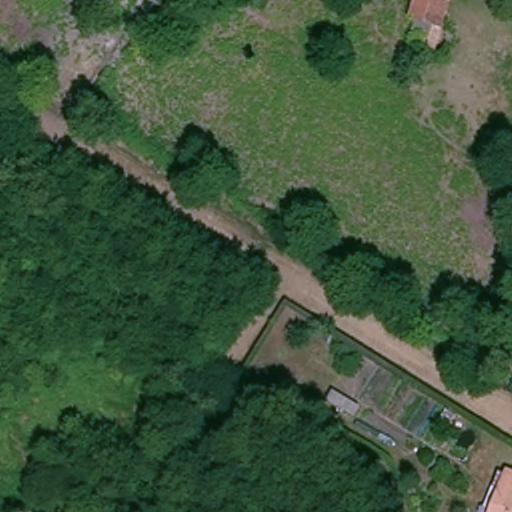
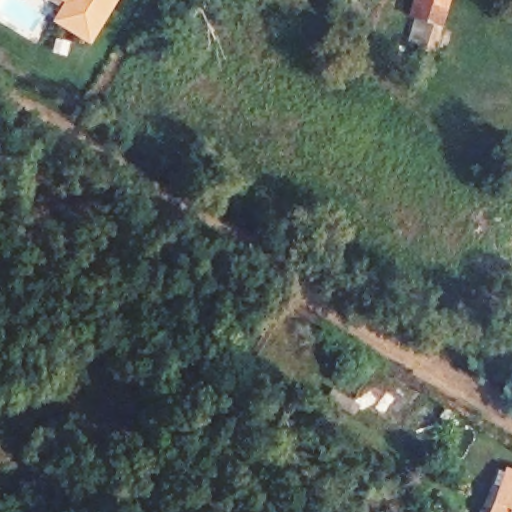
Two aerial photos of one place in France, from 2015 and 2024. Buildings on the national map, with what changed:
new [(57,19),(91,39),(87,45),(50,22),(51,20),(18,0),(56,0),(65,5),(57,19)]
new [(57,19),(65,5),(56,0),(115,0),(91,39),(57,19)]
unchanged [(432,28),(407,20),(413,0),(451,0),(440,45),(427,42),(432,28)]
unchanged [(359,402),(352,413),(330,399),(337,388),(359,402)]
unchanged [(512,486),(512,512),(502,512),(512,486)]

